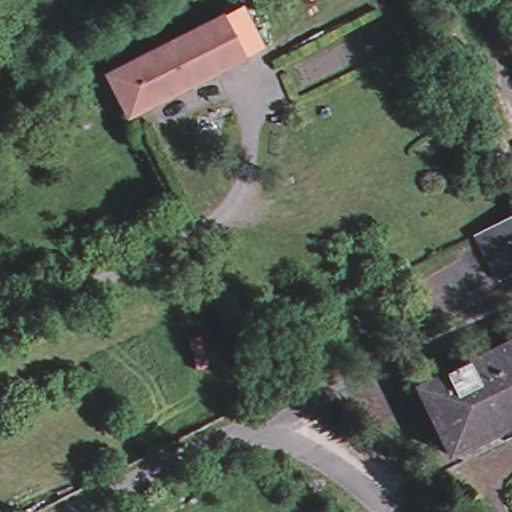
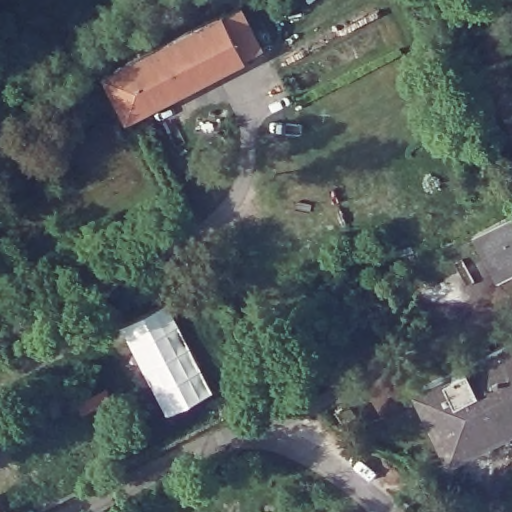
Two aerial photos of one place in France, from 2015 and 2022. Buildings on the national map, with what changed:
unchanged [(264,49),(129,117),(108,76),(243,7),(264,49)]
unchanged [(477,234),(512,216),(512,273),(499,280),(477,234)]
new [(168,302),(214,393),(168,415),(123,326),(168,302)]
unchanged [(512,423),(446,456),(413,388),(512,339),(512,423)]
unchanged [(291,360),(300,375),(287,382),(279,367),(291,360)]

